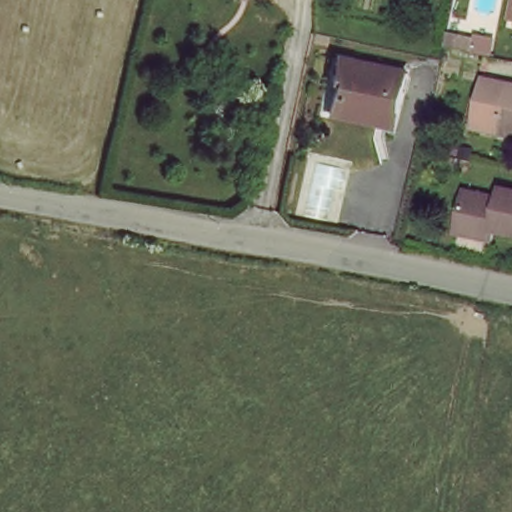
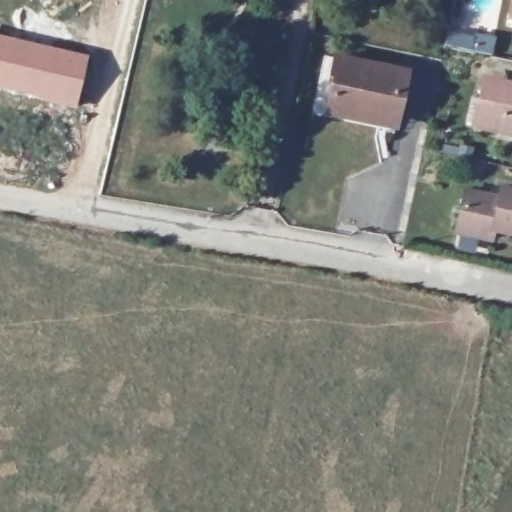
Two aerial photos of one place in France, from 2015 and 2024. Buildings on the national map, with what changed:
new [(77,0),(82,0),(82,1),(77,0)]
new [(76,109),(0,89),(0,35),(89,55),(76,109)]
unchanged [(357,122),(330,116),(335,90),(326,88),(333,62),(405,76),(398,113),(395,130),(357,122)]
unchanged [(510,85),(512,85),(512,128),(506,127),(505,135),(474,127),(483,84),(510,90),(510,85)]
unchanged [(499,190),(512,194),(512,233),(502,231),(500,238),(456,228),(465,194),(495,200),(499,190)]

